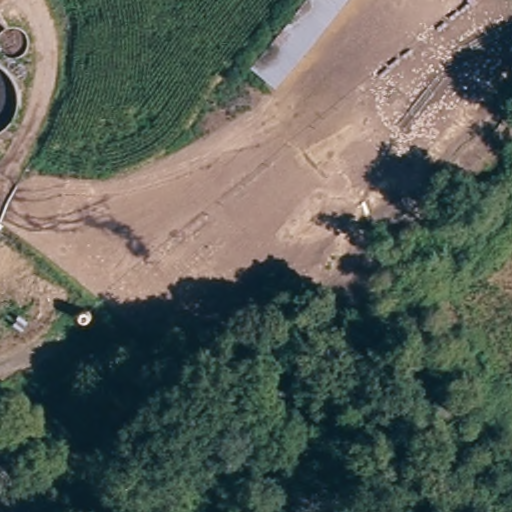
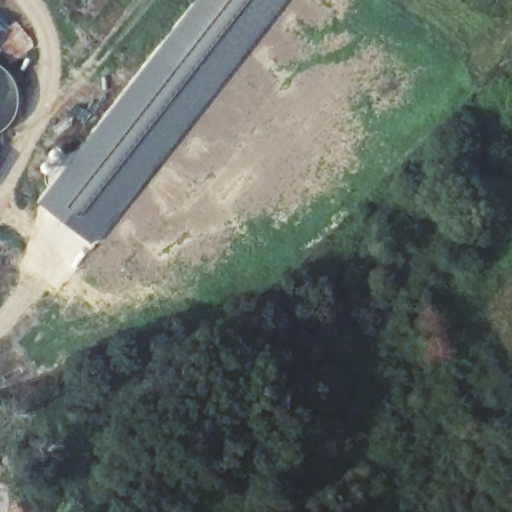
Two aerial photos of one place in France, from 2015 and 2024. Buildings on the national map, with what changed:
new [(70,155),(165,37),(195,0),(287,0),(277,13),(204,106),(120,219),(94,248),(34,202),(70,155)]
demolished [(254,67),(308,0),(348,0),(278,87),(254,67)]
demolished [(11,109),(9,118),(4,125),(0,129),(0,83),(5,87),(8,92),(11,99),(11,106),(11,109)]

